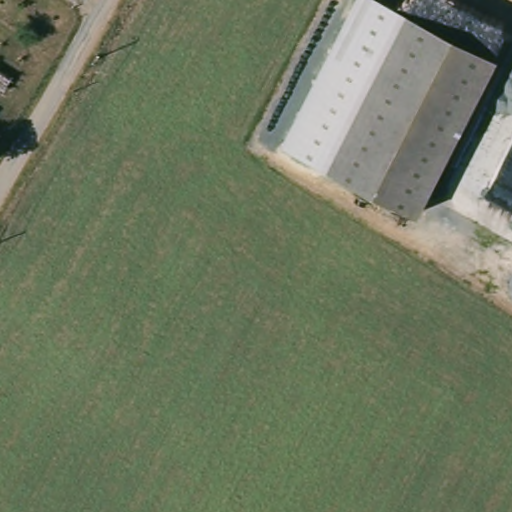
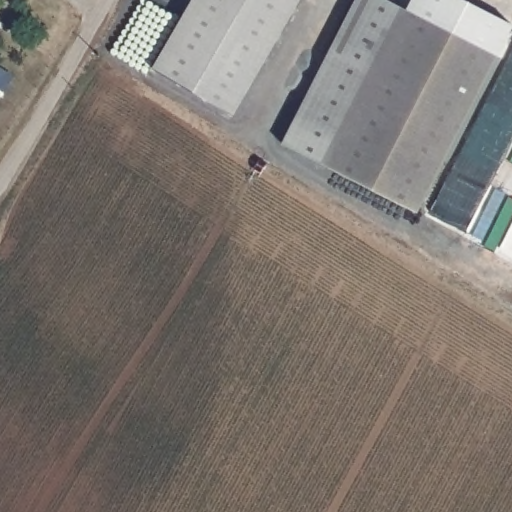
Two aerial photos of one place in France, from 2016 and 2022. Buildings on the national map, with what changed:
new [(299,0),(233,115),(151,69),(191,0),(299,0)]
unchanged [(280,143),(354,0),(384,0),(497,56),(417,213),(280,143)]

